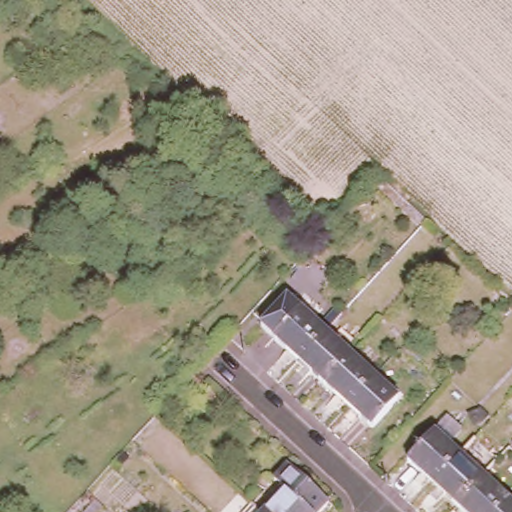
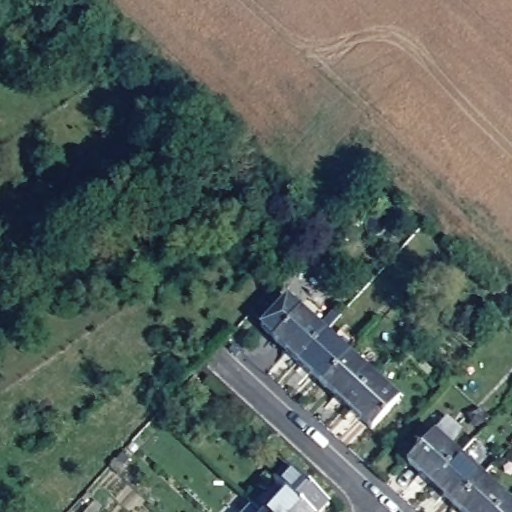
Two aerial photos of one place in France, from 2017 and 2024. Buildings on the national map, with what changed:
unchanged [(285,345),(274,335),(261,323),(287,294),(300,306),(324,329),(295,360),(283,349),(285,345)]
unchanged [(310,368),(307,371),(295,360),(324,329),(348,351),(322,380),(310,368)]
unchanged [(332,393),(335,390),(322,380),(348,351),(372,375),(345,405),(332,393)]
unchanged [(397,397),(372,425),(356,411),(355,413),(345,405),(372,375),(397,397)]
unchanged [(419,473),(420,470),(406,457),(431,429),(457,452),(430,482),(419,473)]
unchanged [(442,489),(440,491),(430,482),(457,452),(481,475),(456,503),(442,489)]
unchanged [(286,489),(276,480),(290,463),(329,499),(317,512),(265,512),(286,489)]
unchanged [(456,503),(481,475),(505,497),(492,512),(466,512),(456,503)]
unchanged [(505,497),(512,503),(512,512),(492,512),(505,497)]

